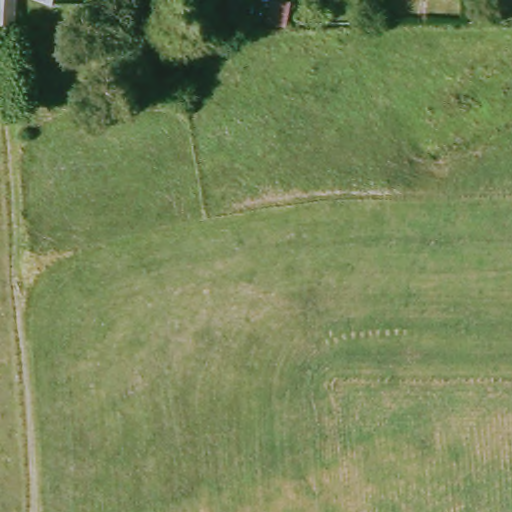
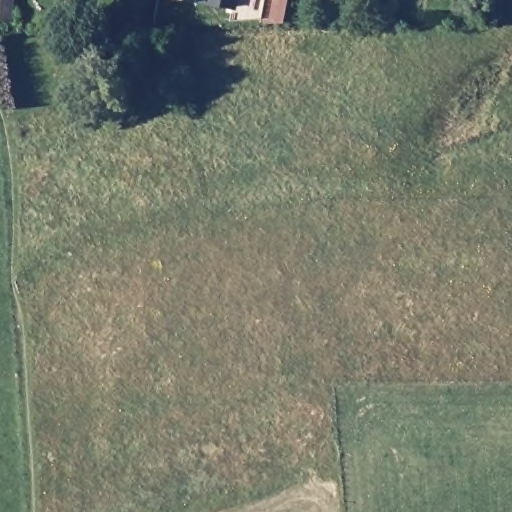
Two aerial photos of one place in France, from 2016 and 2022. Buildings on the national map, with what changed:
unchanged [(0,0),(11,0),(11,24),(0,24),(0,0)]
unchanged [(241,17),(245,0),(263,0),(260,17),(241,17)]

